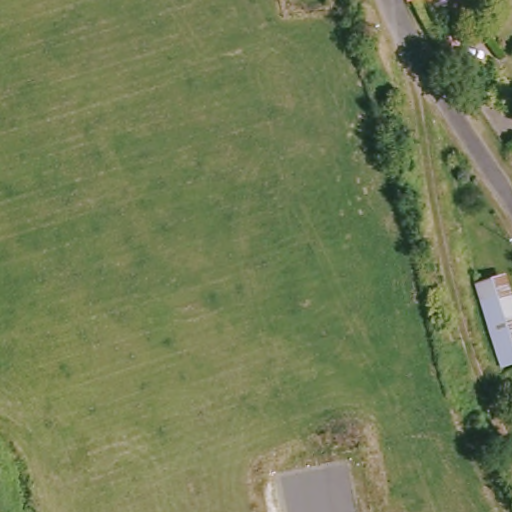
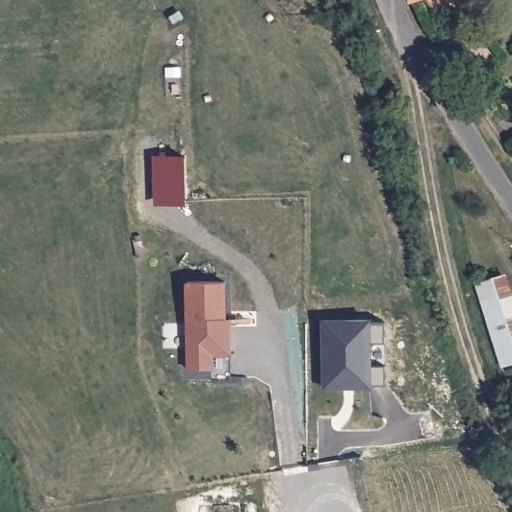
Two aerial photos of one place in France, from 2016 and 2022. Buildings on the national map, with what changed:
unchanged [(499,272),(512,318),(512,354),(495,358),(474,279),(499,272)]
new [(228,279),(225,324),(230,324),(228,352),(210,351),(209,366),(185,364),(190,277),(228,279)]
new [(372,385),(372,387),(324,389),(323,362),(322,324),(333,324),(348,323),(348,321),(370,320),(370,322),(385,322),(387,384),(372,385)]

